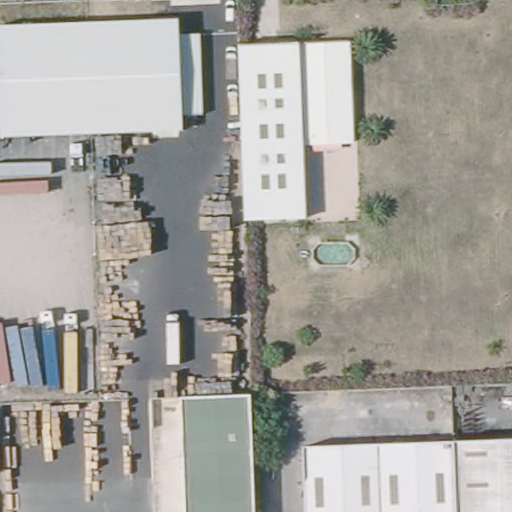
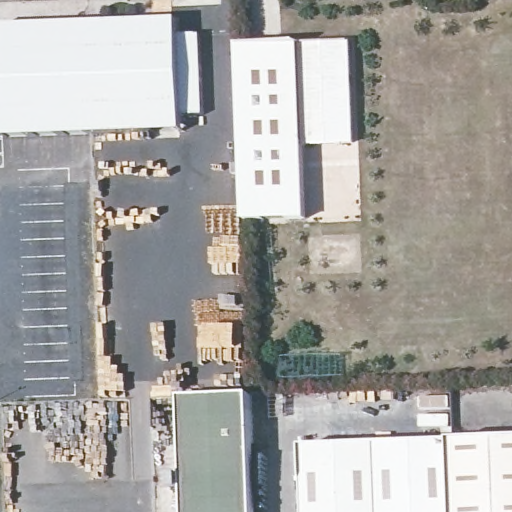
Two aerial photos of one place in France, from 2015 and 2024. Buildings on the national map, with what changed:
unchanged [(440,4),(440,0),(460,0),(460,3),(440,4)]
unchanged [(183,117),(183,131),(1,138),(0,116),(0,26),(178,19),(180,36),(200,35),(206,114),(183,117)]
unchanged [(243,214),(237,44),(352,39),(355,118),(300,120),(303,211),(243,214)]
unchanged [(253,512),(185,512),(181,403),(250,399),(253,512)]
unchanged [(512,439),(512,512),(464,512),(462,441),(512,439)]
unchanged [(462,441),(464,512),(310,512),(308,446),(462,441)]

